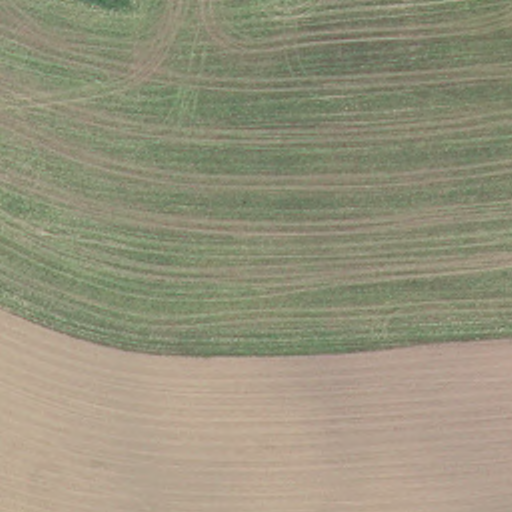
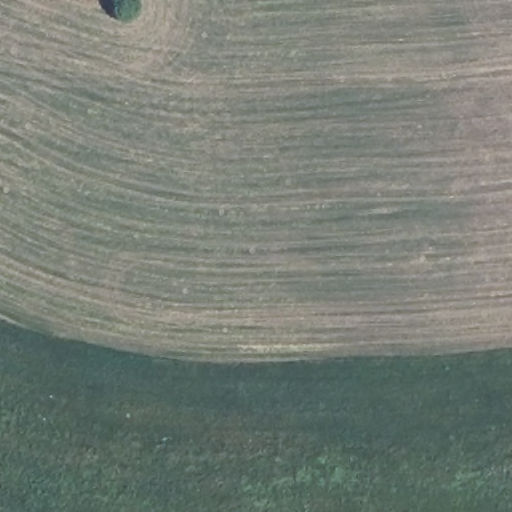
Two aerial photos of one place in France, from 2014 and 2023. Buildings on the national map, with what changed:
[]

